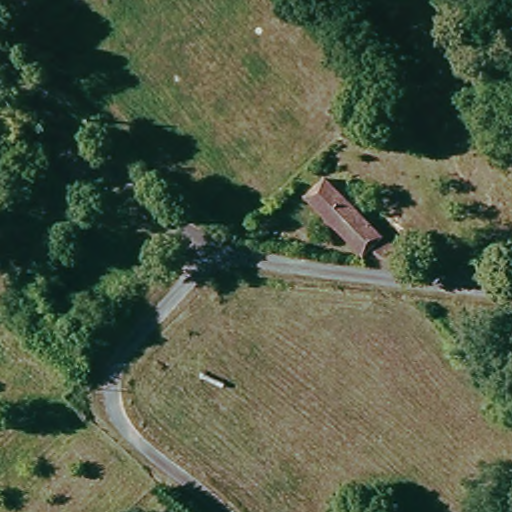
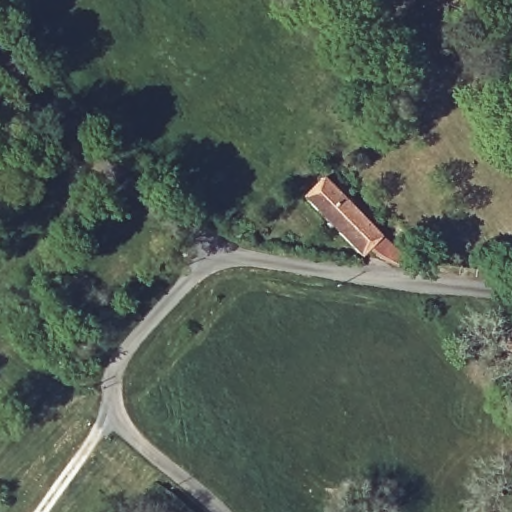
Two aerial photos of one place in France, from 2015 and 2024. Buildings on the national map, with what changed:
unchanged [(333,177),(417,257),(406,267),(385,247),(376,257),(358,242),(312,199),(333,177)]

